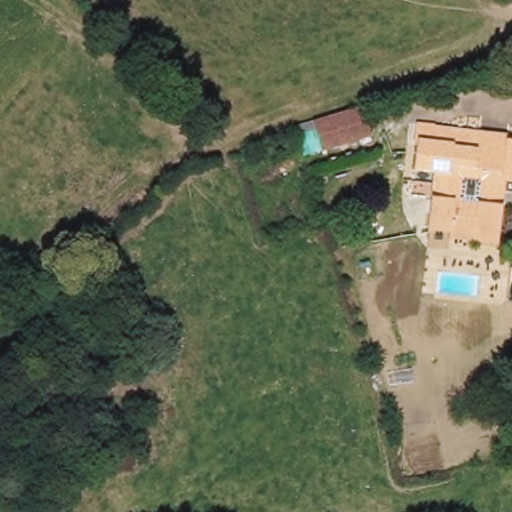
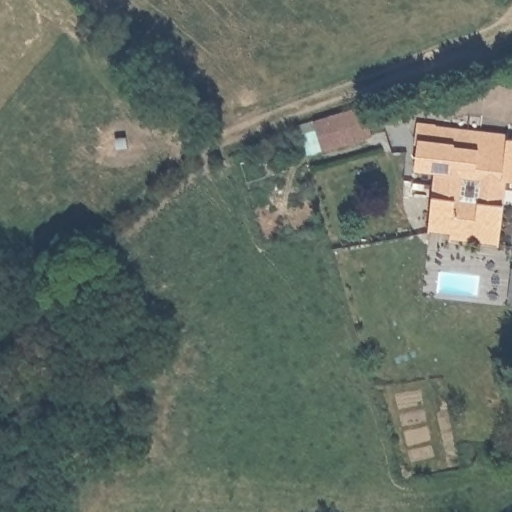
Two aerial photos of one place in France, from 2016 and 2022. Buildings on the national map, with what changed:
unchanged [(363,103),(372,135),(329,149),(319,117),(363,103)]
unchanged [(508,133),(512,134),(512,179),(510,178),(505,242),(431,236),(435,195),(414,193),(416,166),(423,167),(421,121),(508,128),(508,133)]

